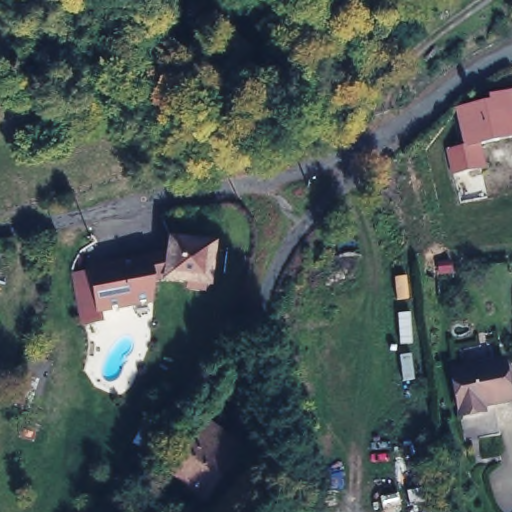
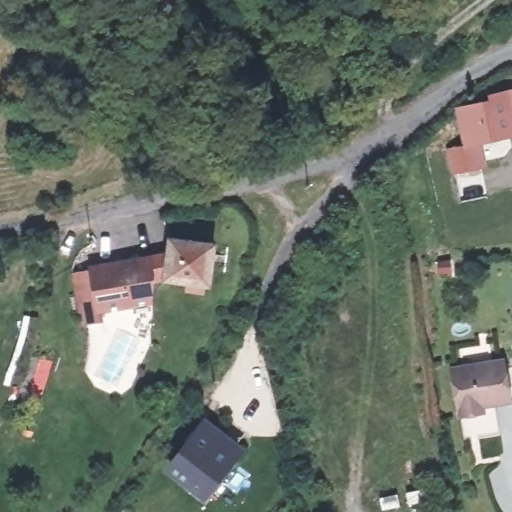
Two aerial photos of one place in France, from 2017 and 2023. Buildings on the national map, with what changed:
unchanged [(458,144),(454,99),(512,92),(512,137),(477,142),(479,172),(446,175),(444,145),(458,144)]
unchanged [(204,288),(203,295),(188,292),(189,286),(166,283),(153,285),(150,304),(99,313),(92,272),(132,265),(132,264),(149,261),(149,263),(170,260),(172,243),(217,250),(212,290),(204,288)]
unchanged [(499,354),(507,395),(492,397),(497,429),(461,435),(448,363),(499,354)]
unchanged [(242,450),(207,496),(175,470),(212,424),(242,450)]

